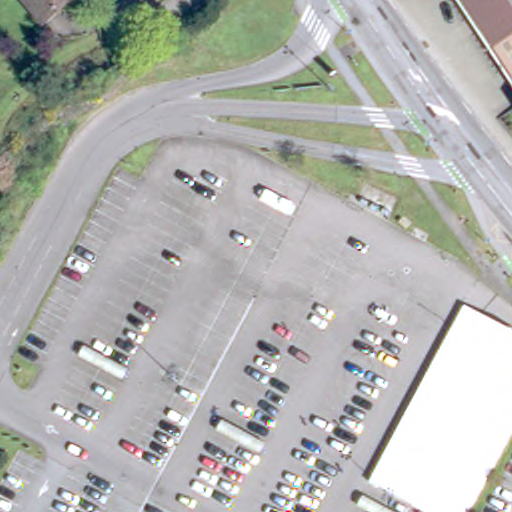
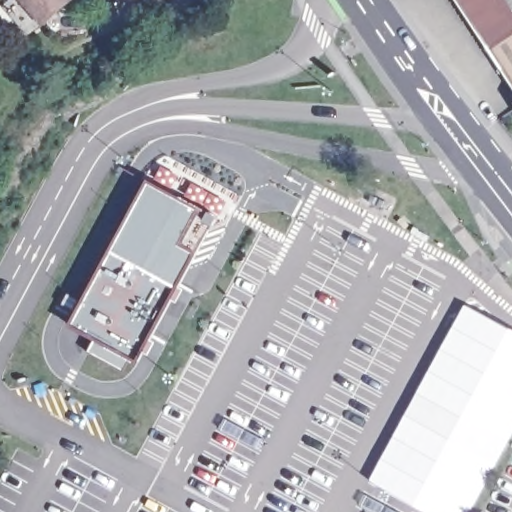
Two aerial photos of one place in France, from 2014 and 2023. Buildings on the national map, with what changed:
unchanged [(65,0),(41,20),(25,0),(65,0)]
unchanged [(512,0),(512,11),(480,31),(460,0),(512,0)]
unchanged [(480,31),(512,11),(512,29),(488,44),(480,31)]
unchanged [(512,29),(512,83),(488,44),(512,29)]
new [(146,180),(210,212),(220,217),(200,255),(197,254),(137,363),(132,360),(124,370),(88,351),(95,341),(68,325),(146,180)]

